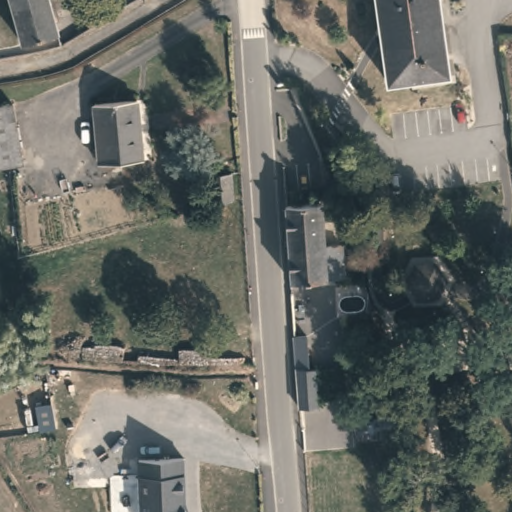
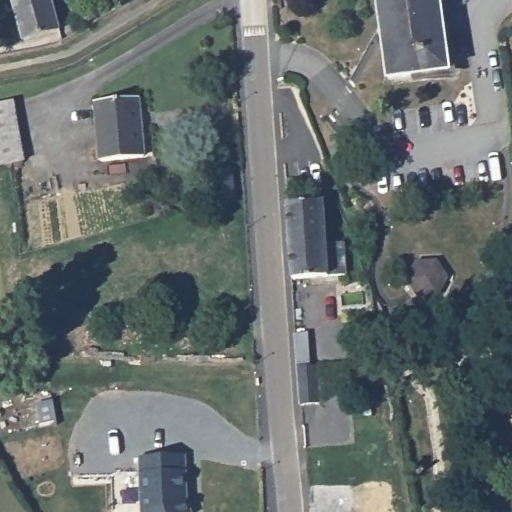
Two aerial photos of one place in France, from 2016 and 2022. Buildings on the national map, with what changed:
unchanged [(63,31),(23,43),(11,0),(55,0),(63,31)]
unchanged [(451,68),(389,76),(379,0),(441,0),(451,68)]
unchanged [(139,154),(98,158),(93,101),(134,97),(139,154)]
unchanged [(0,103),(9,101),(22,159),(22,160),(0,164),(0,103)]
unchanged [(228,169),(229,191),(209,195),(208,170),(228,169)]
unchanged [(285,202),(319,199),(320,202),(325,273),(290,275),(285,202)]
unchanged [(300,361),(313,361),(313,365),(319,365),(322,406),(303,408),(300,361)]
unchanged [(188,512),(140,512),(139,457),(184,456),(185,500),(188,512)]

